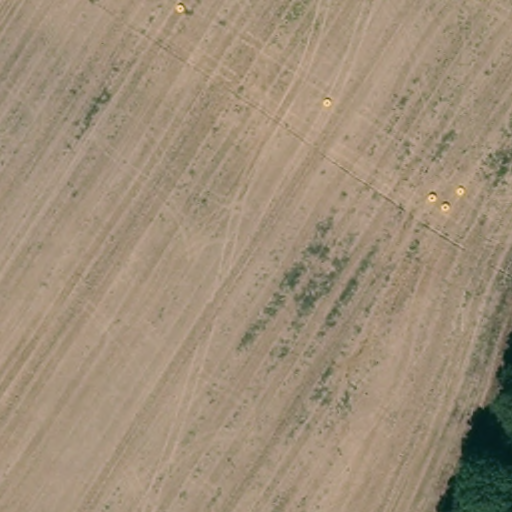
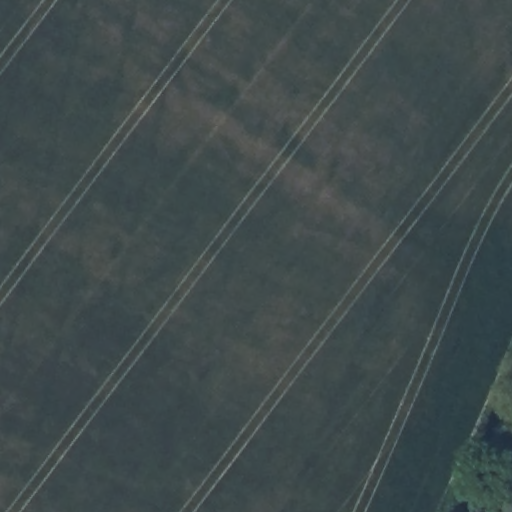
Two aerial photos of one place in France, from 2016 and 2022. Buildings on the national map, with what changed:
[]

